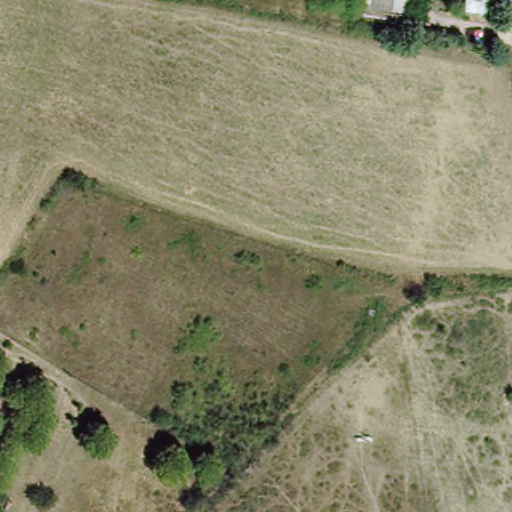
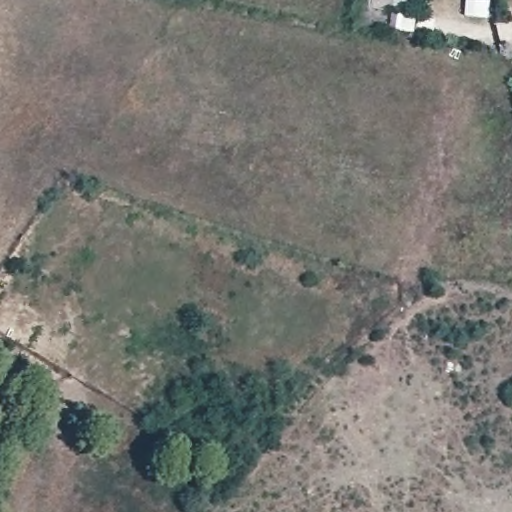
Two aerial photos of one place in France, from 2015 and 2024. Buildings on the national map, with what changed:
unchanged [(406,17),(376,15),(375,24),(360,22),(362,0),(408,0),(406,17)]

